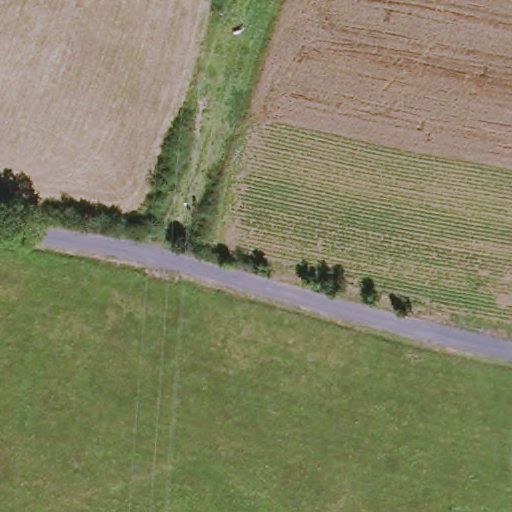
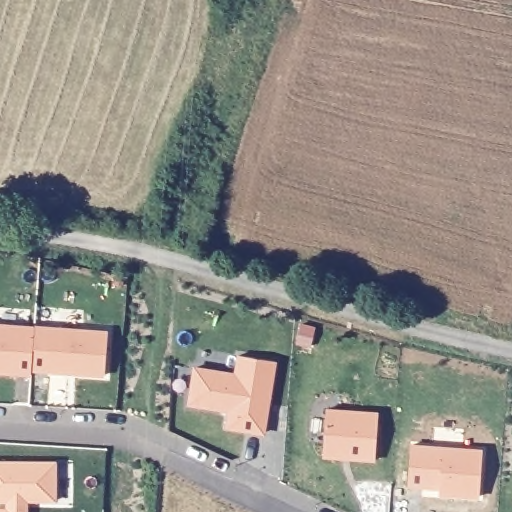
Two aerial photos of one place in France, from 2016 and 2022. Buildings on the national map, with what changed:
new [(29,374),(0,373),(0,326),(32,327),(29,374)]
new [(105,330),(102,373),(29,369),(32,326),(105,330)]
new [(195,370),(235,376),(239,355),(275,361),(264,433),(228,428),(230,411),(190,405),(195,370)]
new [(327,410),(379,414),(375,460),(324,456),(327,410)]
new [(410,445),(465,449),(462,495),(430,492),(430,486),(408,485),(410,445)]
new [(57,498),(29,497),(29,512),(0,512),(0,504),(10,505),(10,495),(0,495),(0,456),(57,460),(57,498)]

